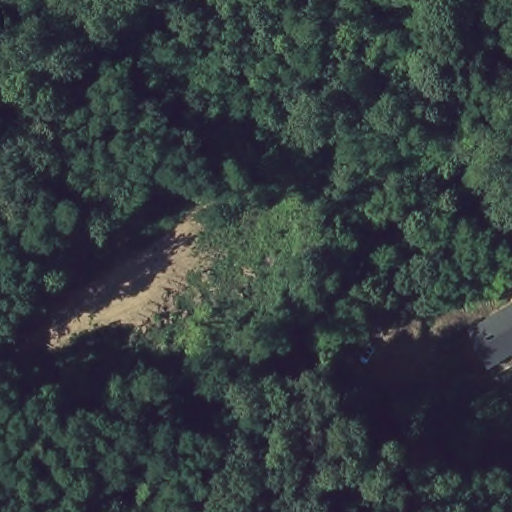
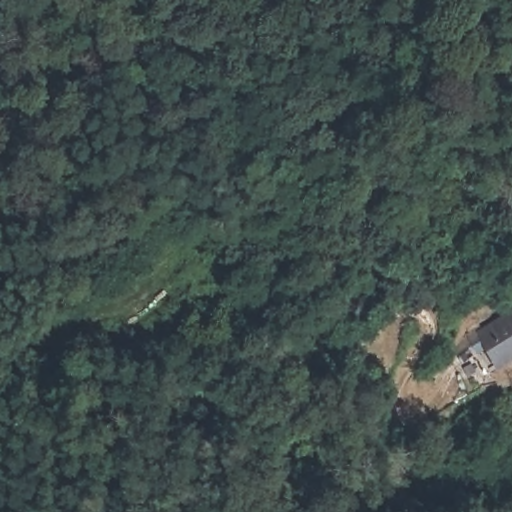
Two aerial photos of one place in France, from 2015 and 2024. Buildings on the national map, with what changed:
unchanged [(482,328),(512,306),(512,370),(510,372),(482,328)]

